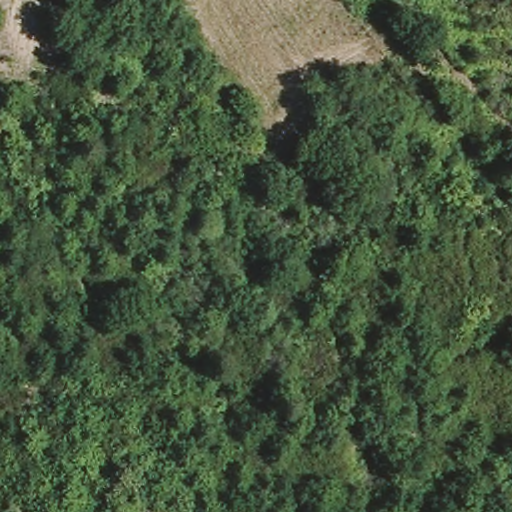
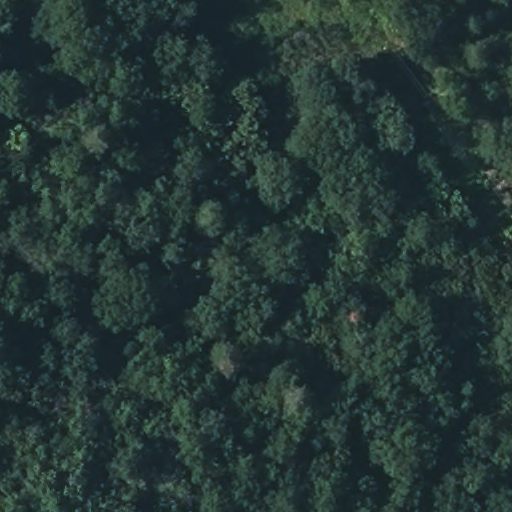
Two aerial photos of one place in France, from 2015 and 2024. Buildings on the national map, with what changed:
unchanged [(279,338),(296,368),(279,380),(264,350),(279,338)]

